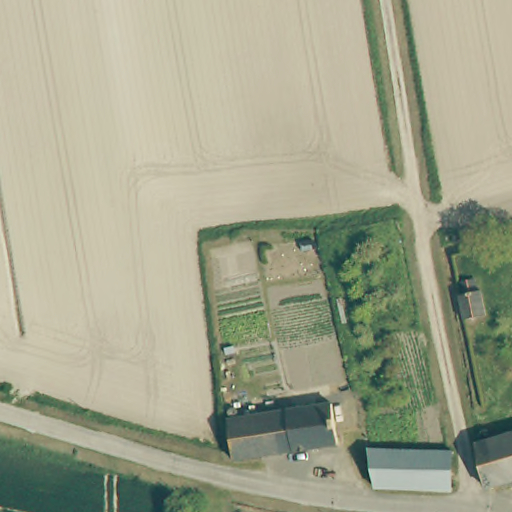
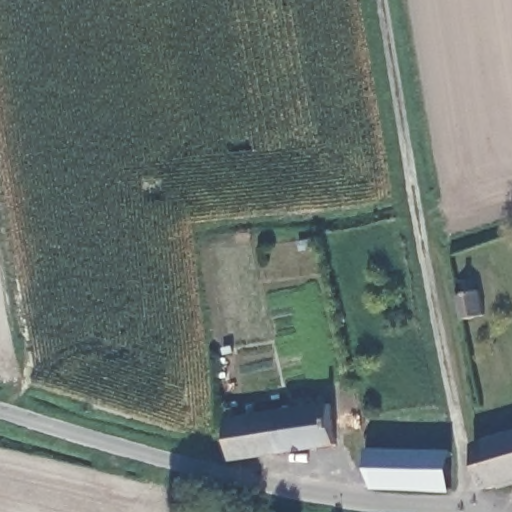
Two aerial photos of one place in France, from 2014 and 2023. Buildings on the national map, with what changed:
unchanged [(479,313),(455,317),(450,291),(455,290),(455,286),(457,282),(461,281),(465,282),(468,284),(470,287),(474,287),(479,313)]
unchanged [(230,421),(266,418),(264,402),(286,401),(288,416),(334,412),(338,450),(234,454),(230,421)]
unchanged [(486,475),(472,430),(512,419),(512,468),(486,475)]
unchanged [(375,485),(371,449),(446,451),(454,488),(375,485)]

